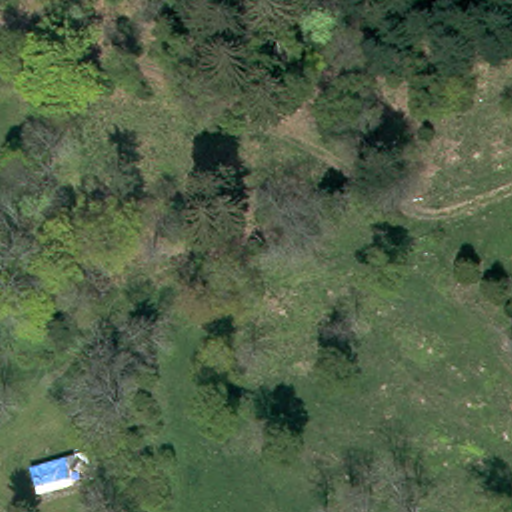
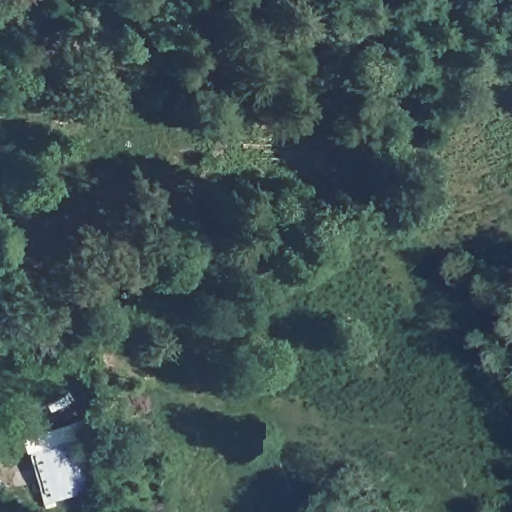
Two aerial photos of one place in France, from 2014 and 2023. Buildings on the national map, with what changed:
unchanged [(85,455),(89,484),(37,502),(31,473),(85,455)]

